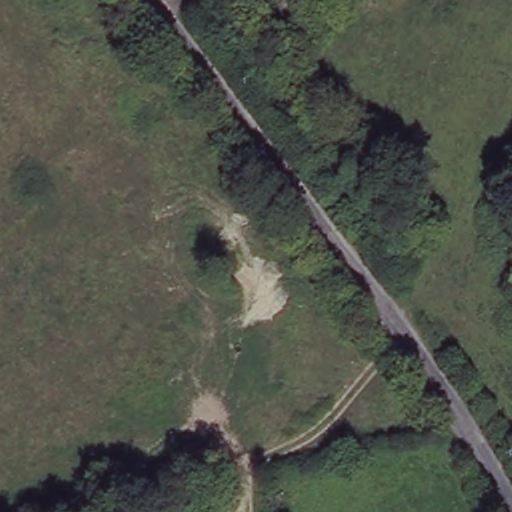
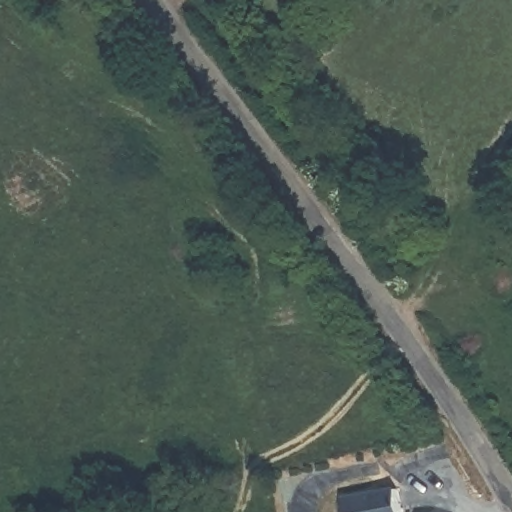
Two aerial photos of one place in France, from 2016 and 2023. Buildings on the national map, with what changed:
new [(397,488),(400,512),(341,512),(337,497),(397,488)]

